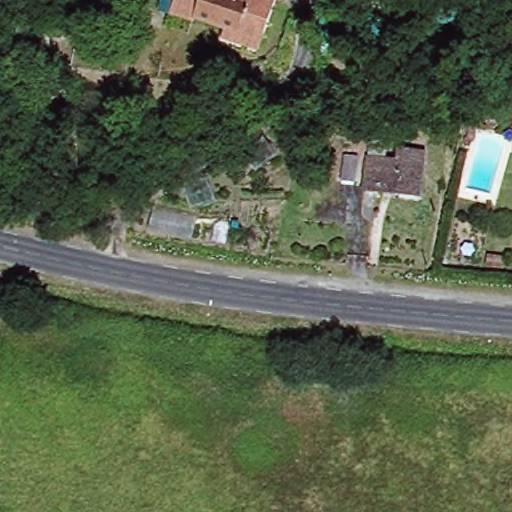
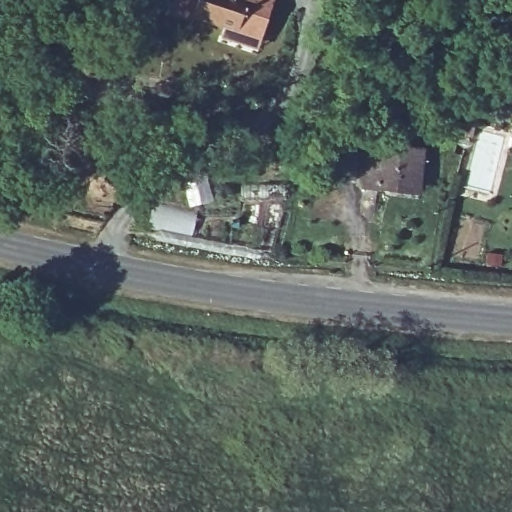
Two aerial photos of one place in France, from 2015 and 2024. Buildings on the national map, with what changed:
unchanged [(218,40),(222,26),(190,15),(189,19),(163,10),(167,0),(271,0),(257,38),(253,51),(218,40)]
unchanged [(392,194),(362,193),(363,134),(377,135),(378,155),(394,157),(394,143),(420,144),(418,187),(417,196),(392,194)]
unchanged [(352,186),(334,185),(336,159),(352,160),(352,186)]

